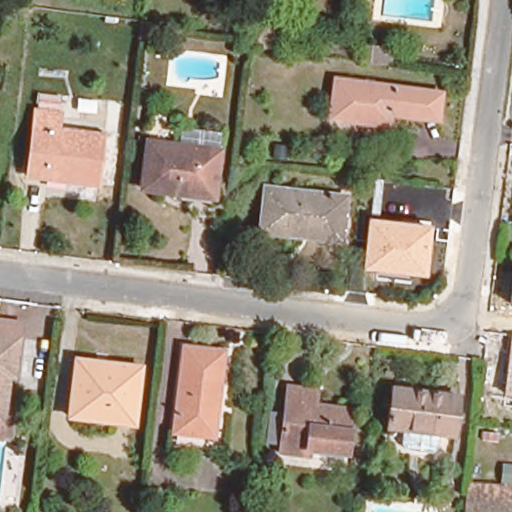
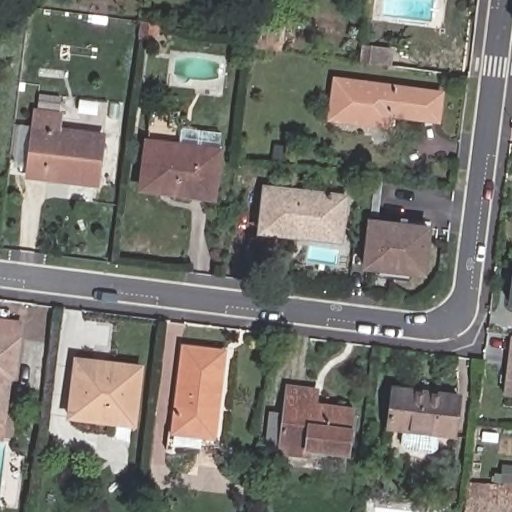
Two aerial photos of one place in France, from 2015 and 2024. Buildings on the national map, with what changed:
unchanged [(257,22),(283,25),(281,52),(254,49),(257,22)]
unchanged [(158,26),(157,42),(140,40),(142,24),(158,26)]
unchanged [(392,52),(390,65),(360,62),(362,48),(392,52)]
unchanged [(441,96),(438,120),(391,115),(389,124),(332,117),(337,80),(441,96)]
unchanged [(60,115),(58,130),(103,135),(97,184),(28,176),(37,112),(60,115)]
unchanged [(143,189),(149,142),(181,147),(182,129),(220,135),(217,152),(212,197),(143,189)]
unchanged [(345,197),(340,241),(262,232),(266,189),(345,197)]
unchanged [(376,276),(376,271),(362,269),(367,218),(432,225),(427,276),(410,273),(410,280),(376,276)]
unchanged [(508,305),(512,272),(512,305),(508,305)]
unchanged [(0,321),(25,324),(23,338),(18,376),(12,376),(7,422),(5,433),(0,432),(0,321)]
unchanged [(505,395),(511,336),(512,336),(512,395),(505,395)]
unchanged [(222,352),(212,435),(177,431),(187,348),(222,352)]
unchanged [(141,367),(134,423),(72,417),(79,361),(141,367)]
unchanged [(272,413),(286,415),(290,387),(316,391),(313,405),(351,410),(347,452),(308,447),(307,455),(281,452),(282,443),(269,442),(272,413)]
unchanged [(458,396),(454,435),(391,427),(395,387),(458,396)]
unchanged [(506,488),(507,470),(512,470),(512,512),(466,512),(469,485),(506,488)]

